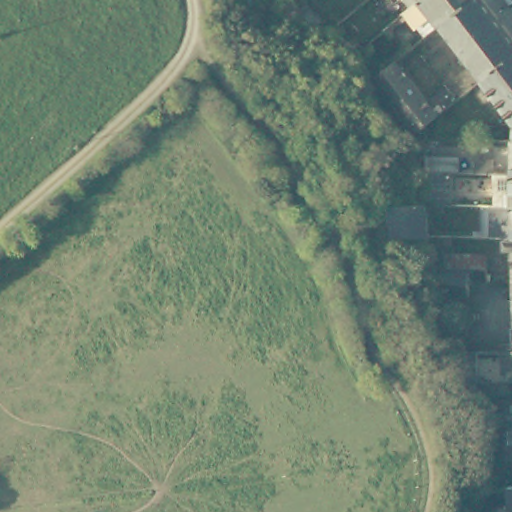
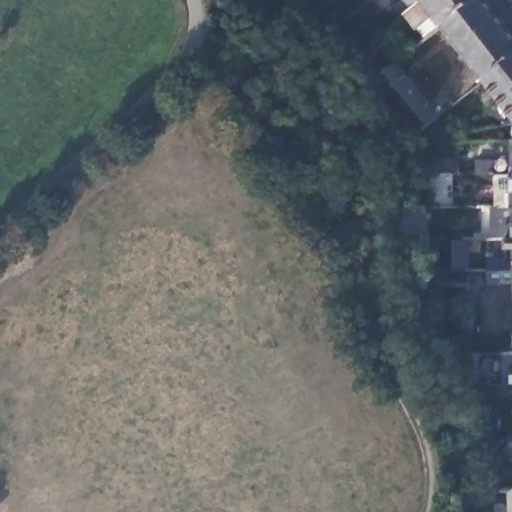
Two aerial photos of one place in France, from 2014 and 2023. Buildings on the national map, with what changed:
unchanged [(282,14),(276,6),(284,0),(285,0),(290,7),(282,14)]
unchanged [(378,2),(376,0),(381,0),(378,2)]
unchanged [(406,3),(401,6),(396,0),(410,0),(406,3)]
unchanged [(443,21),(432,6),(418,17),(406,3),(410,0),(469,0),(443,21)]
unchanged [(512,56),(488,75),(443,21),(469,0),(491,0),(512,26),(512,56)]
unchanged [(512,56),(512,104),(488,75),(512,56)]
unchanged [(394,62),(435,119),(418,135),(375,78),(394,62)]
unchanged [(422,170),(422,154),(498,151),(499,167),(448,169),(450,203),(423,204),(422,170)]
unchanged [(499,167),(512,167),(512,201),(500,201),(499,167)]
unchanged [(506,222),(505,216),(501,217),(500,201),(512,201),(512,233),(511,233),(510,222),(506,222)]
unchanged [(425,235),(384,236),(380,205),(423,204),(425,235)]
unchanged [(511,233),(512,233),(512,244),(511,244),(511,233)]
unchanged [(437,255),(482,254),(483,268),(465,269),(466,295),(436,296),(435,270),(437,270),(437,255)]
unchanged [(506,347),(512,347),(512,378),(506,378),(506,347)]
unchanged [(471,388),(461,388),(461,380),(459,380),(459,348),(476,348),(476,380),(506,378),(512,378),(512,389),(472,390),(471,388)]
unchanged [(512,443),(508,443),(508,425),(485,425),(479,412),(512,410),(512,443)]
unchanged [(512,443),(512,456),(506,455),(507,443),(508,443),(512,443)]

